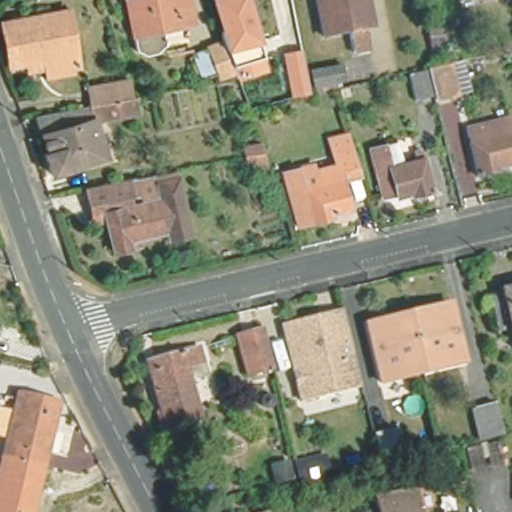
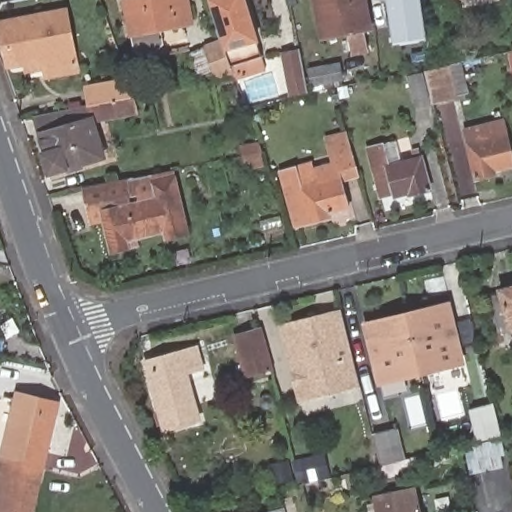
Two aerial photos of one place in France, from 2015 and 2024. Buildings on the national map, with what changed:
unchanged [(163,40),(156,51),(145,54),(135,47),(126,0),(188,0),(192,20),(161,26),(163,40)]
unchanged [(233,0),(240,24),(243,32),(218,40),(214,30),(219,29),(210,0),(233,0)]
unchanged [(365,0),(370,24),(364,25),(368,46),(351,50),(347,29),(322,33),(316,0),(365,0)]
new [(382,0),(416,0),(421,26),(438,22),(443,55),(426,58),(423,39),(390,44),(382,0)]
unchanged [(51,76),(48,58),(10,66),(1,25),(59,14),(67,12),(75,51),(80,71),(51,76)]
unchanged [(214,74),(204,48),(219,42),(219,45),(228,69),(214,74)]
unchanged [(197,44),(206,67),(193,71),(184,49),(197,44)]
unchanged [(312,92),(295,96),(286,52),(303,49),(312,92)]
unchanged [(345,62),(348,80),(316,86),(313,69),(345,62)]
unchanged [(445,67),(467,62),(474,92),(453,96),(445,67)]
unchanged [(440,67),(447,95),(433,99),(425,72),(440,67)]
unchanged [(103,157),(50,172),(43,152),(46,152),(39,123),(38,117),(90,106),(87,90),(129,81),(132,99),(134,98),(137,114),(118,117),(94,122),(103,157)]
unchanged [(512,142),(512,171),(499,174),(499,177),(478,181),(469,135),(509,127),(512,142)]
unchanged [(340,176),(347,206),(328,210),(329,214),(294,222),(282,167),(300,163),(313,161),(314,165),(336,160),(330,135),(349,130),(361,171),(340,176)]
unchanged [(246,171),(244,160),(240,161),(235,142),(258,139),(263,167),(246,171)]
unchanged [(415,149),(425,146),(436,189),(417,193),(416,191),(399,195),(398,192),(385,195),(378,166),(374,152),(387,149),(391,162),(417,156),(415,149)]
unchanged [(130,247),(112,251),(106,221),(96,224),(91,202),(87,186),(130,178),(138,177),(148,175),(177,169),(189,234),(169,237),(168,230),(138,236),(139,245),(130,247)]
unchanged [(500,296),(499,290),(512,287),(512,348),(500,296)]
unchanged [(461,363),(378,383),(364,325),(392,318),(420,312),(447,305),(461,363)]
unchanged [(341,310),(359,380),(361,388),(301,403),(282,325),(341,310)]
unchanged [(272,370),(246,376),(236,335),(263,328),(272,370)]
unchanged [(200,422),(162,432),(158,415),(145,365),(199,350),(205,367),(207,380),(190,384),(195,405),(200,422)]
unchanged [(19,390),(58,398),(47,450),(52,450),(49,465),(6,456),(19,390)]
unchanged [(480,439),(471,406),(494,401),(502,433),(480,439)]
unchanged [(399,420),(407,452),(385,458),(377,426),(399,420)]
unchanged [(46,478),(41,477),(34,512),(0,512),(0,486),(6,456),(49,465),(46,478)]
unchanged [(353,478),(355,489),(337,492),(338,499),(308,503),(305,487),(353,478)]
unchanged [(376,498),(419,488),(424,512),(379,512),(376,498)]
unchanged [(286,510),(286,512),(276,512),(286,510)]

